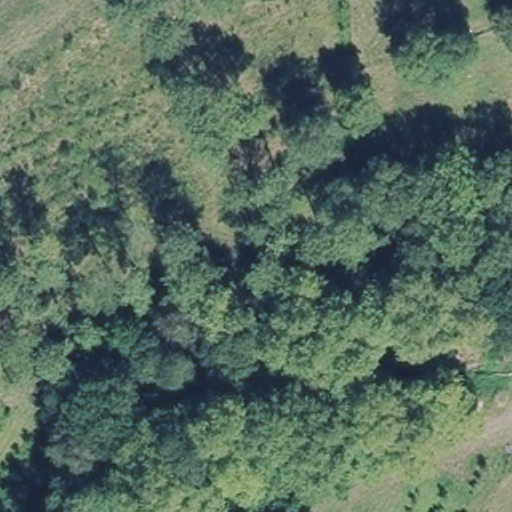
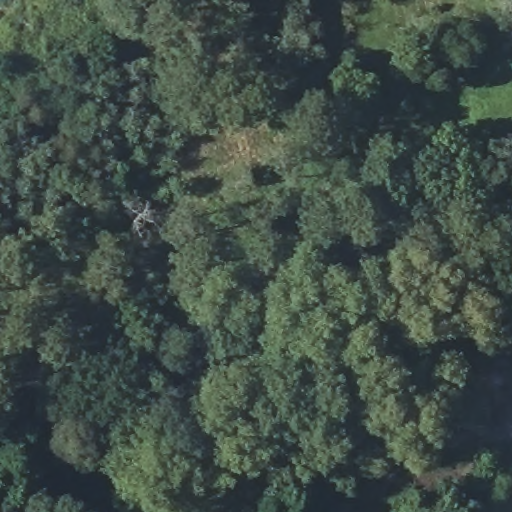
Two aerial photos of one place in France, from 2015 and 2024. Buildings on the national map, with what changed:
unchanged [(397,161),(393,177),(376,172),(377,157),(397,161)]

